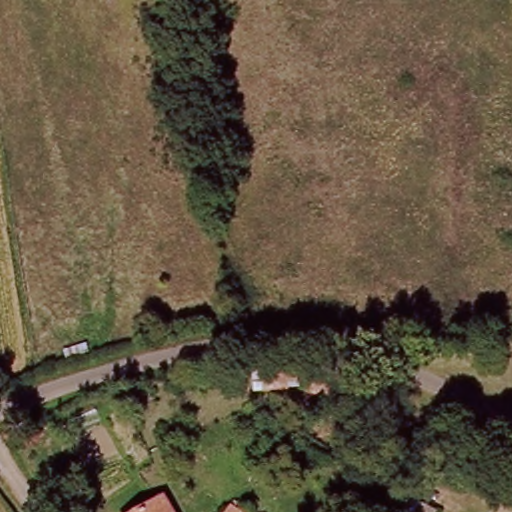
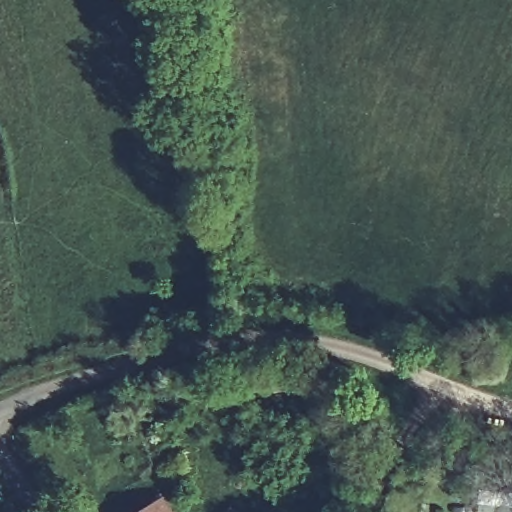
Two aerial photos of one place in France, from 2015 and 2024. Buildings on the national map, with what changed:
unchanged [(166,498),(172,509),(174,512),(143,512),(166,498)]
unchanged [(233,509),(237,512),(230,512),(233,509)]

